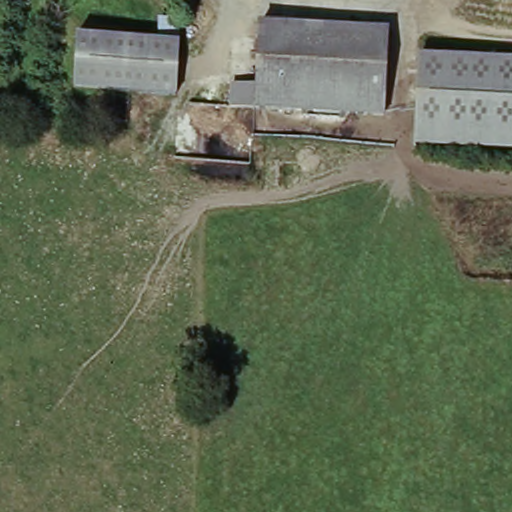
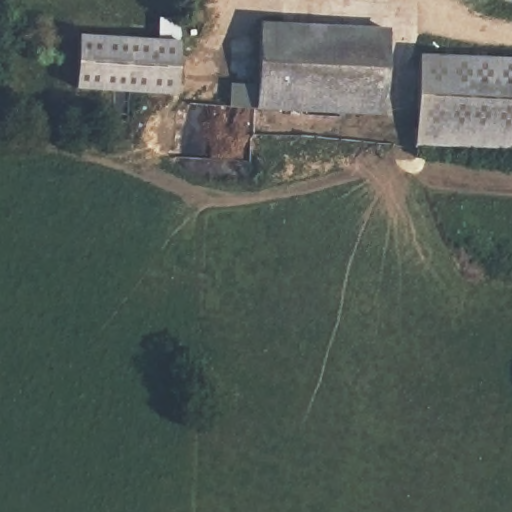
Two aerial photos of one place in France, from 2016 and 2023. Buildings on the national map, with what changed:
unchanged [(286,81),(386,84),(385,115),(229,111),(230,88),(257,89),(259,26),(288,27),(286,81)]
unchanged [(386,29),(386,84),(286,81),(288,27),(386,29)]
unchanged [(178,93),(75,89),(77,32),(180,39),(178,93)]
unchanged [(512,139),(419,139),(420,64),(512,65),(512,139)]

